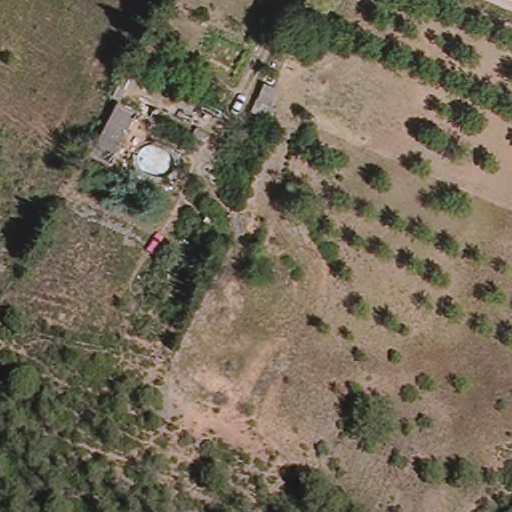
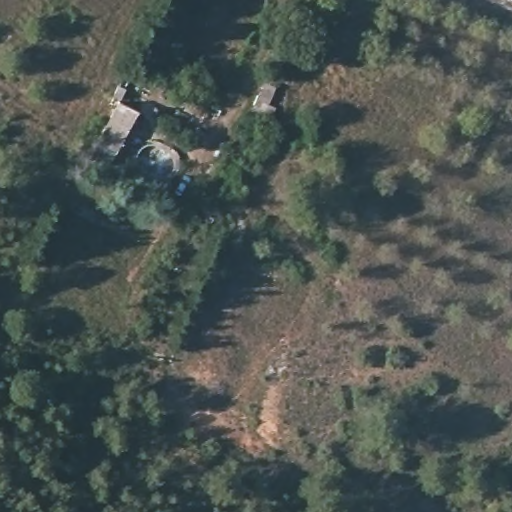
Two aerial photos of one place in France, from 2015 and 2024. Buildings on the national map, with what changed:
unchanged [(116,169),(90,158),(115,100),(140,112),(116,169)]

